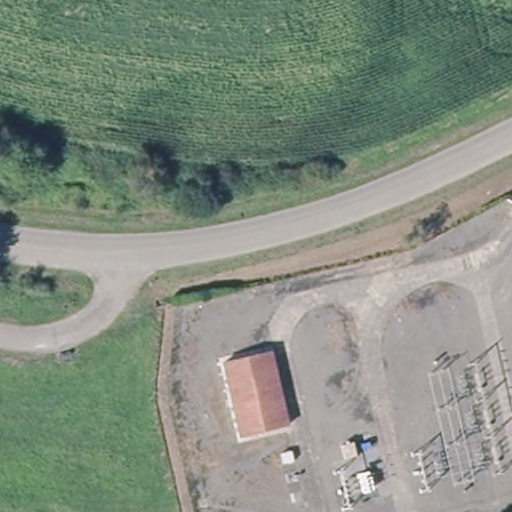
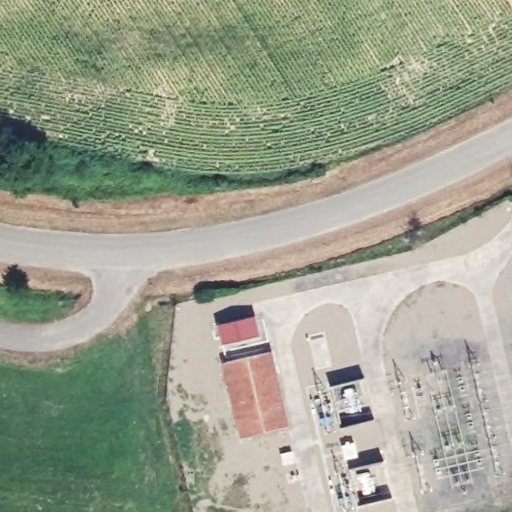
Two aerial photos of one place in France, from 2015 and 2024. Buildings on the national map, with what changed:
new [(217,325),(256,315),(260,335),(221,344),(217,325)]
unchanged [(269,356),(284,422),(244,433),(228,367),(269,356)]

